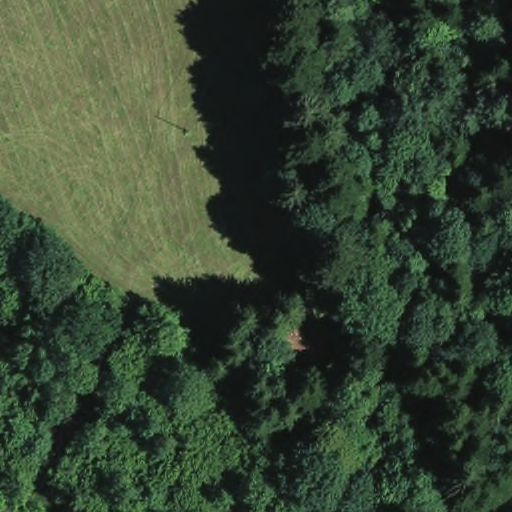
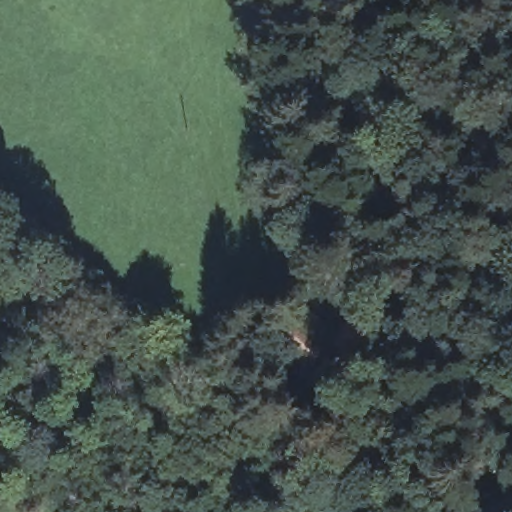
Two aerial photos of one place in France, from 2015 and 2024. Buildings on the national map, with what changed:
unchanged [(336,314),(341,309),(358,324),(336,348),(331,343),(323,335),(294,367),(261,337),(289,304),(321,332),(336,314)]

